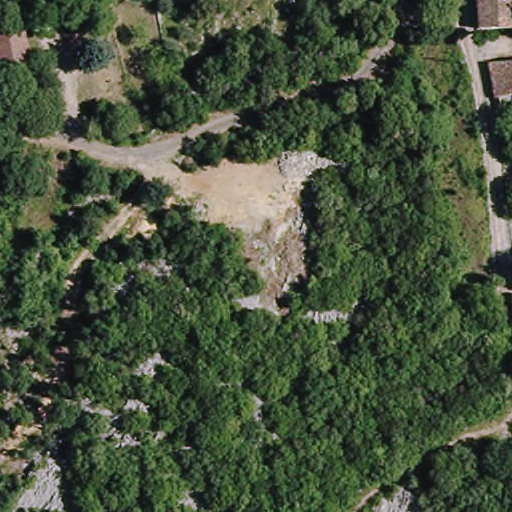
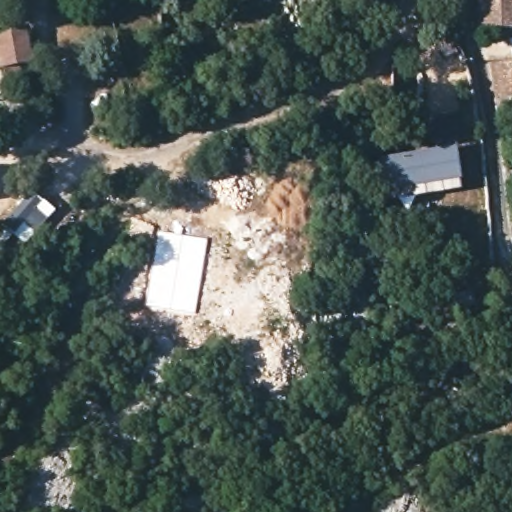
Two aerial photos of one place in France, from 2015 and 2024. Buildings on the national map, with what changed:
unchanged [(471,37),(467,0),(509,0),(510,36),(471,37)]
unchanged [(3,73),(0,73),(0,38),(25,34),(30,69),(17,71),(23,89),(8,93),(3,73)]
new [(452,39),(466,71),(462,73),(461,71),(451,74),(443,59),(422,67),(417,53),(452,39)]
unchanged [(487,65),(512,64),(512,112),(496,113),(494,100),(487,65)]
new [(422,146),(455,143),(461,188),(386,199),(377,157),(422,146)]
new [(33,193),(54,209),(25,243),(12,232),(21,222),(11,214),(33,193)]
new [(209,239),(196,313),(147,305),(157,232),(209,239)]

